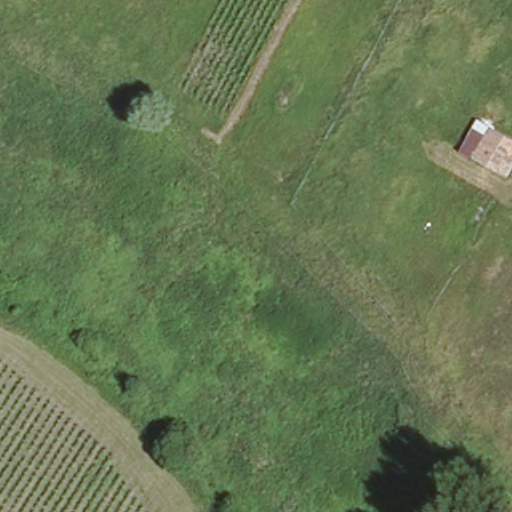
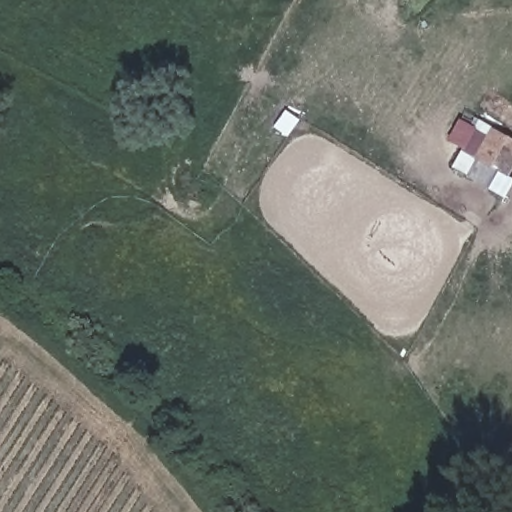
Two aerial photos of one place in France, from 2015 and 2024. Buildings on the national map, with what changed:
unchanged [(512,138),(512,173),(509,178),(474,157),(491,126),(512,138)]

